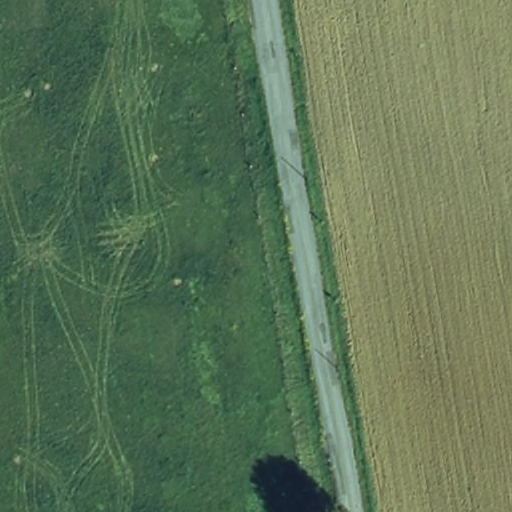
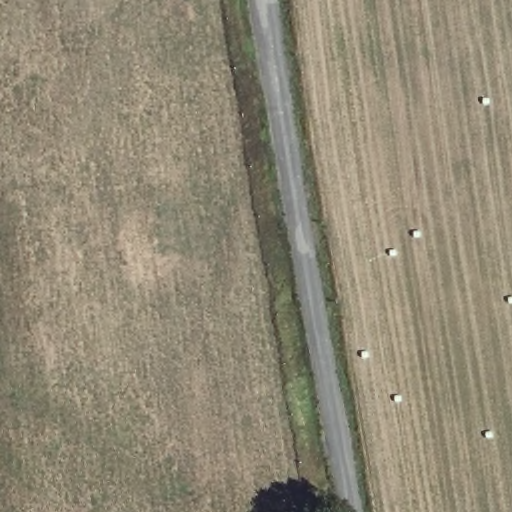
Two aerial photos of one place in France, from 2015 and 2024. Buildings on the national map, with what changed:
[]

